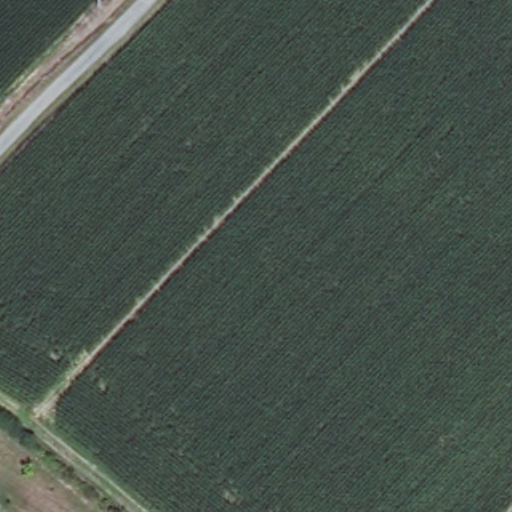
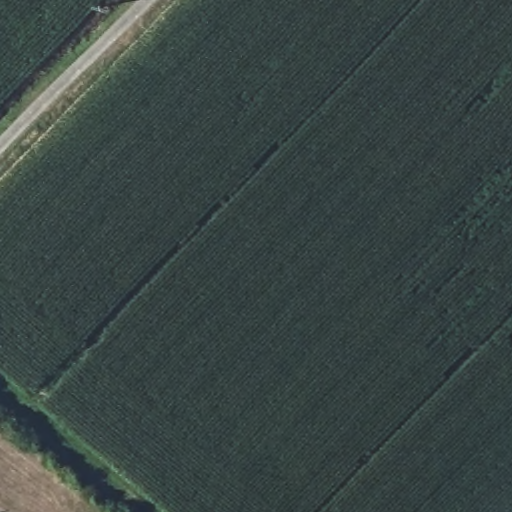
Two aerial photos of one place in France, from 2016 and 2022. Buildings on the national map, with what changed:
[]

